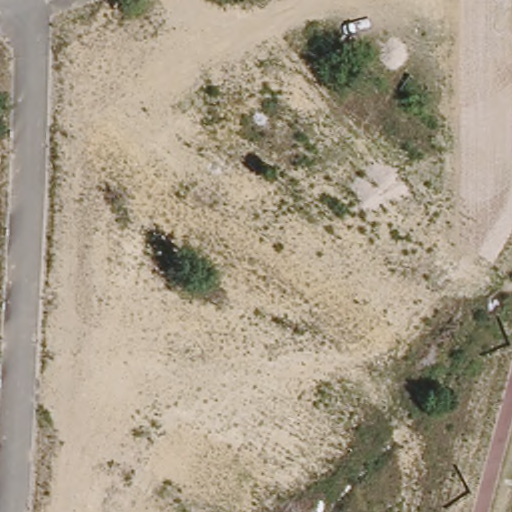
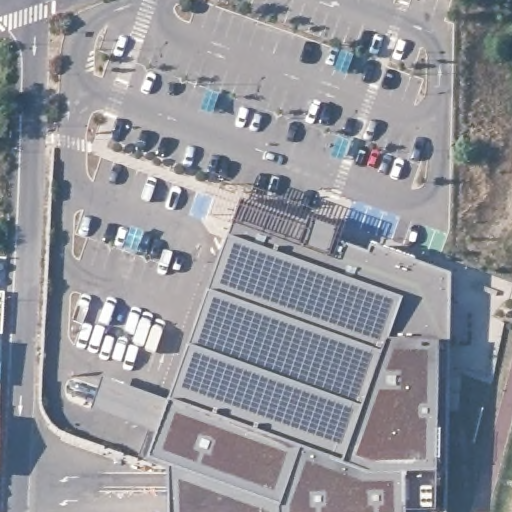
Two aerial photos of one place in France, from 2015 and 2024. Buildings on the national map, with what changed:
new [(168,512),(168,467),(139,456),(148,431),(91,410),(103,378),(140,392),(172,304),(200,313),(242,200),(308,223),(310,220),(341,230),(337,243),(370,254),(372,247),(451,274),(448,512),(168,512)]

